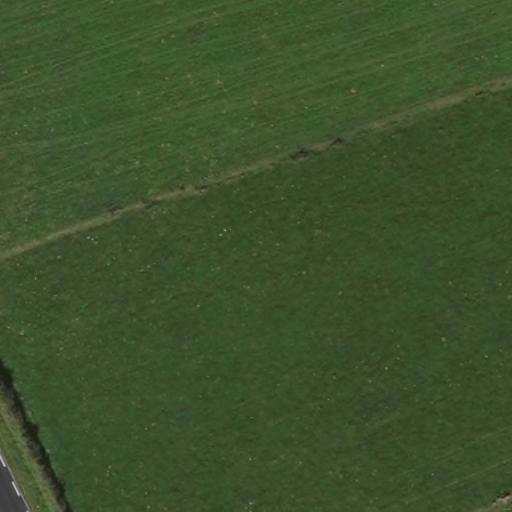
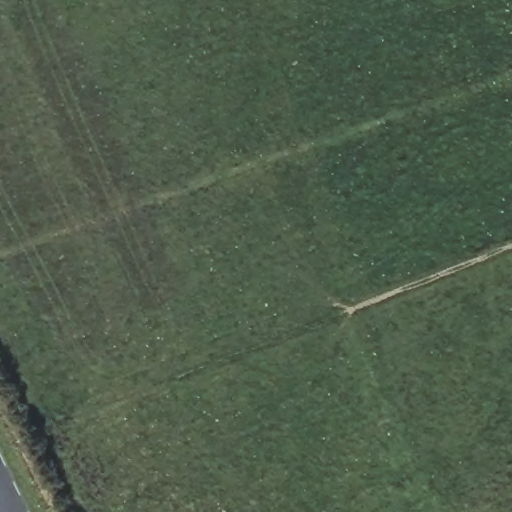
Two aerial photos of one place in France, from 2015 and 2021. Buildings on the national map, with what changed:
[]

